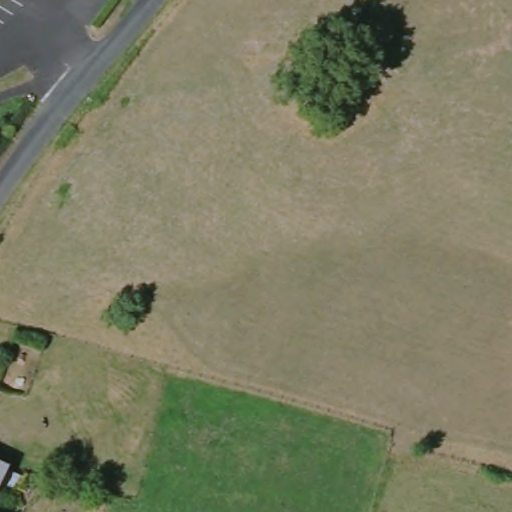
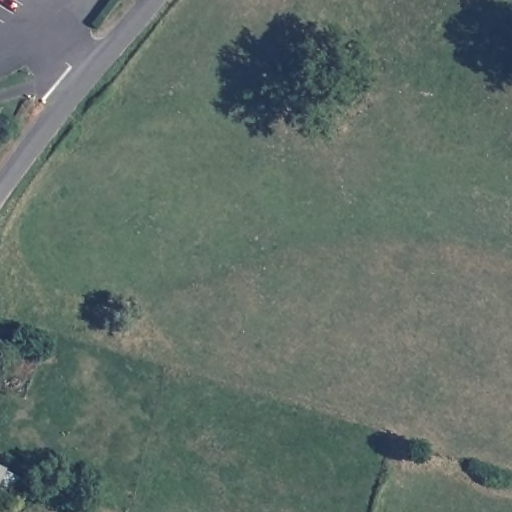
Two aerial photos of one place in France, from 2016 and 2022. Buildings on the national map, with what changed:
unchanged [(0,480),(0,476),(2,476),(0,480)]

